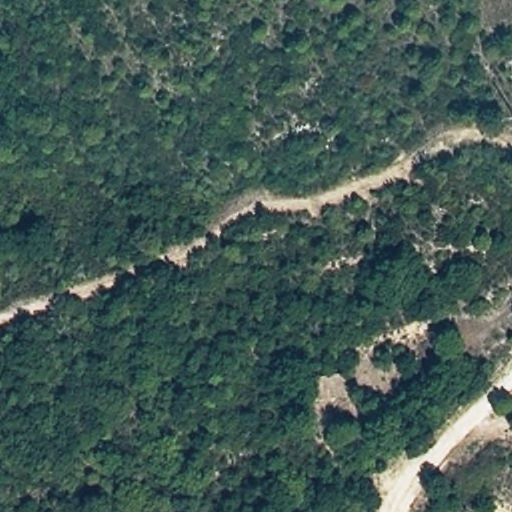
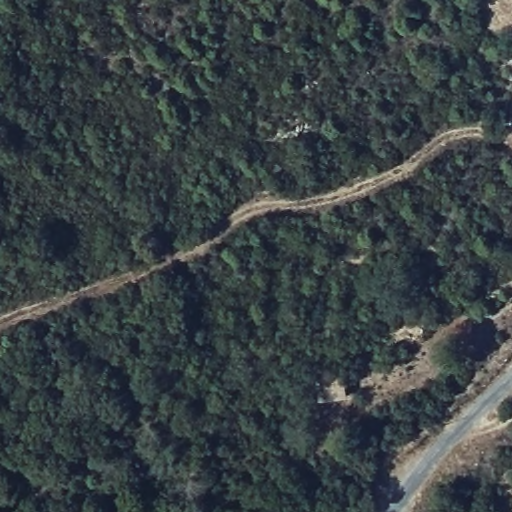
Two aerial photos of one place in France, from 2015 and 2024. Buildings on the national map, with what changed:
unchanged [(349,372),(353,397),(319,403),(316,379),(349,372)]

